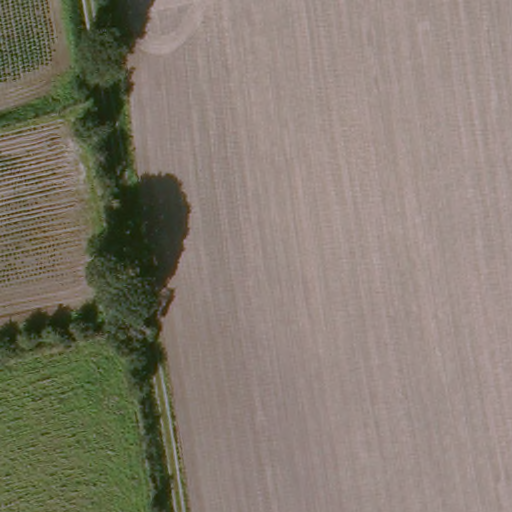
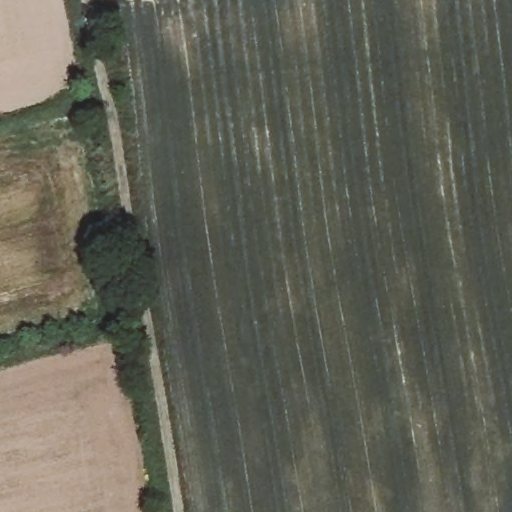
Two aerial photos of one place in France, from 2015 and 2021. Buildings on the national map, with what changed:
[]

